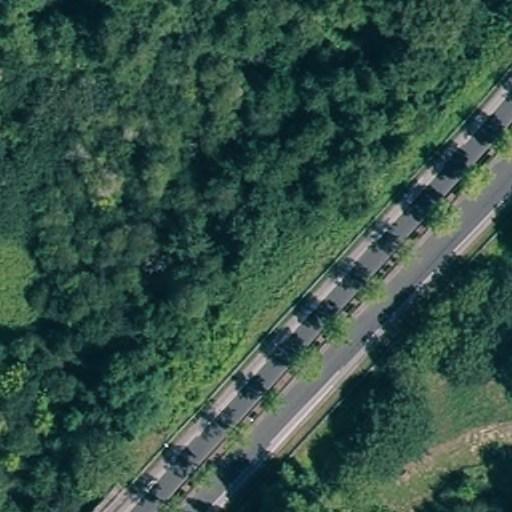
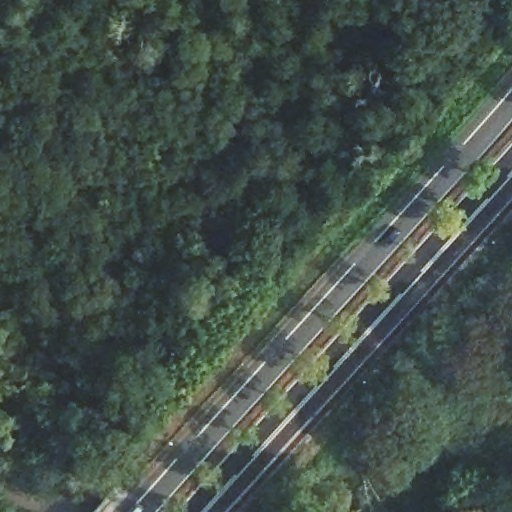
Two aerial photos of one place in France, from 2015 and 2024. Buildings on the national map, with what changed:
[]

